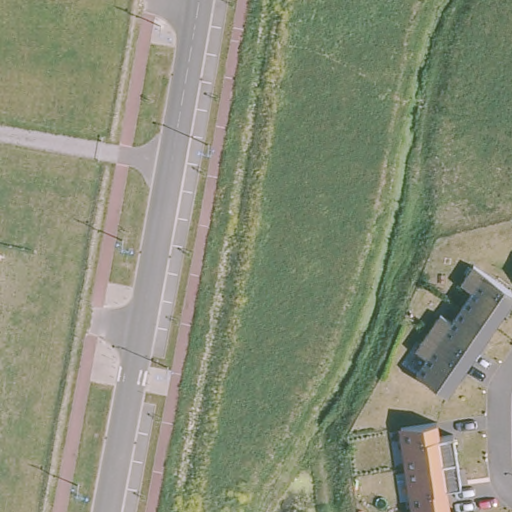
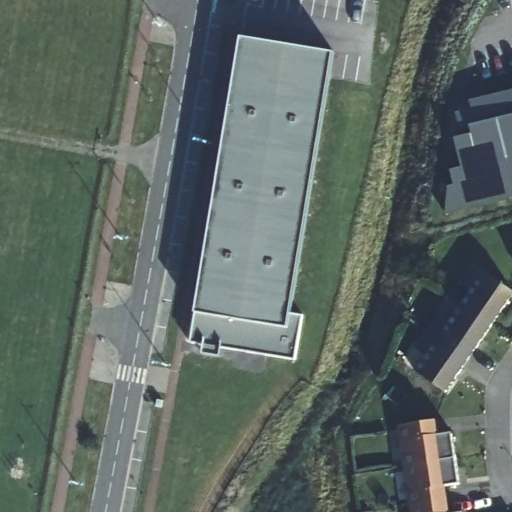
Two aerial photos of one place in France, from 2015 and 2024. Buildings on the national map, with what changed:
new [(332,56),(291,315),(305,316),(299,359),(191,342),(243,43),(332,56)]
new [(455,186),(451,170),(462,167),(455,139),(472,134),(471,127),(462,129),(457,113),(473,109),(471,101),(512,91),(512,198),(447,214),(449,187),(455,186)]
unchanged [(512,290),(512,296),(492,325),(469,358),(446,392),(415,371),(426,356),(415,348),(440,312),(451,320),(472,288),(461,281),(474,262),(512,290)]
unchanged [(452,432),(456,458),(460,483),(446,486),(449,512),(415,512),(402,425),(436,420),(439,435),(452,432)]

